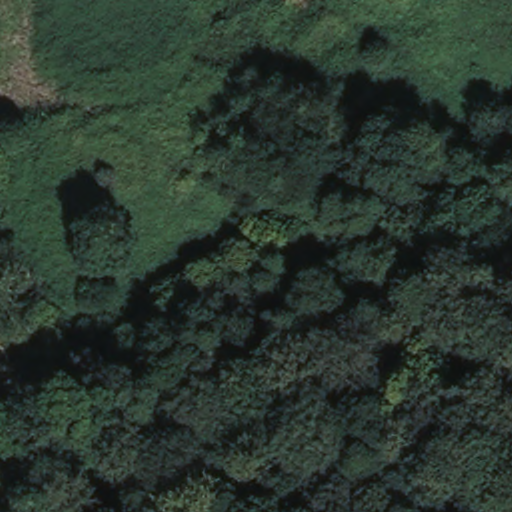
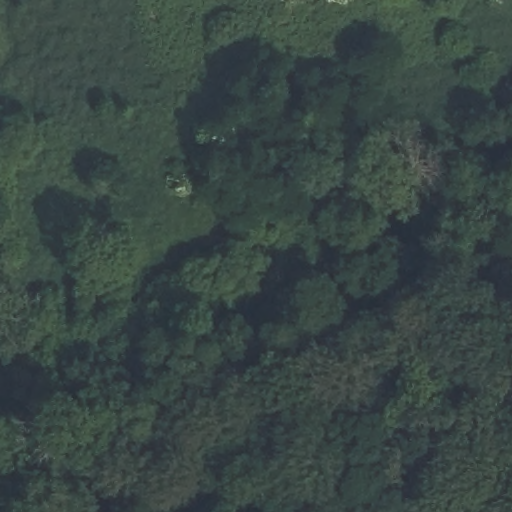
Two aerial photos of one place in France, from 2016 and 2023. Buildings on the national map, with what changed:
unchanged [(201,163),(188,144),(245,103),(258,122),(201,163)]

